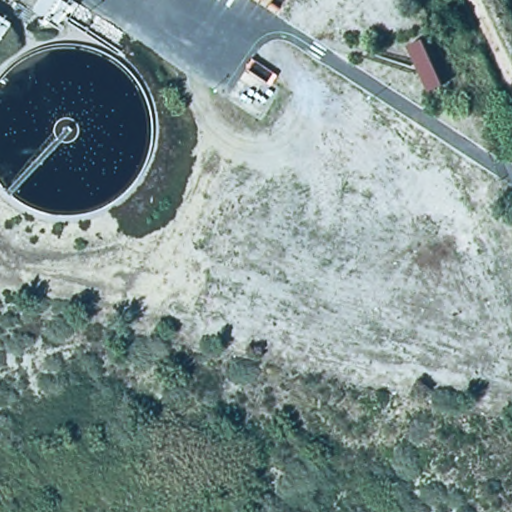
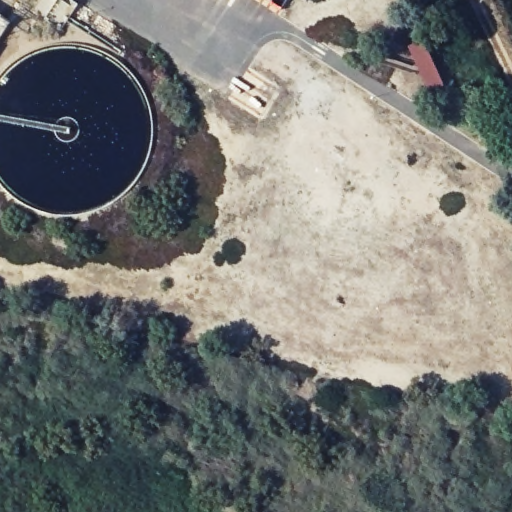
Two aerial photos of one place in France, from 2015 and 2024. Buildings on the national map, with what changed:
unchanged [(418,42),(441,90),(427,95),(405,47),(418,42)]

